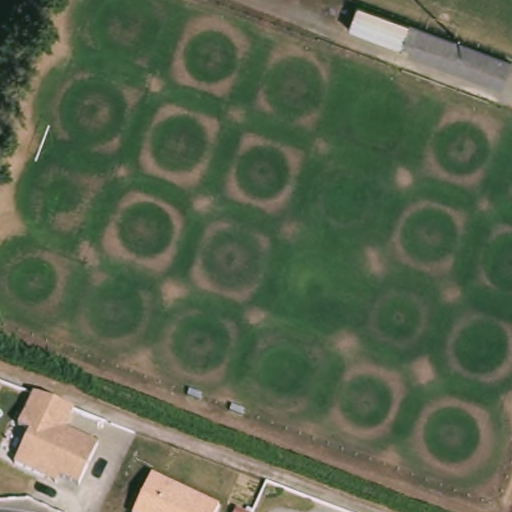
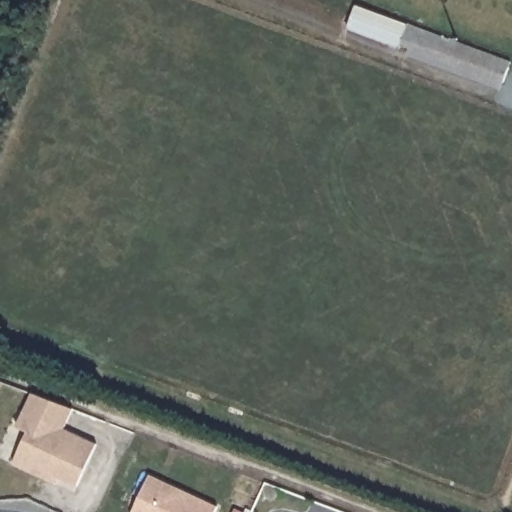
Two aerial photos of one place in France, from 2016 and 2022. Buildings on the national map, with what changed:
unchanged [(363,6),(413,25),(512,61),(512,72),(504,91),(404,55),(406,51),(353,30),(363,6)]
unchanged [(73,410),(65,430),(96,443),(79,485),(59,477),(56,482),(15,463),(31,432),(18,427),(33,393),(73,410)]
unchanged [(217,506),(215,512),(132,512),(150,475),(217,506)]

